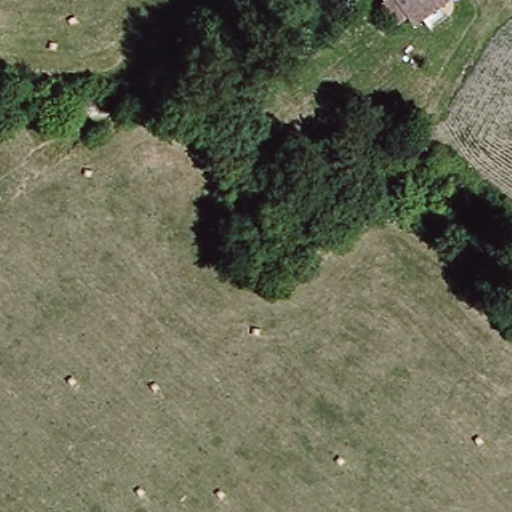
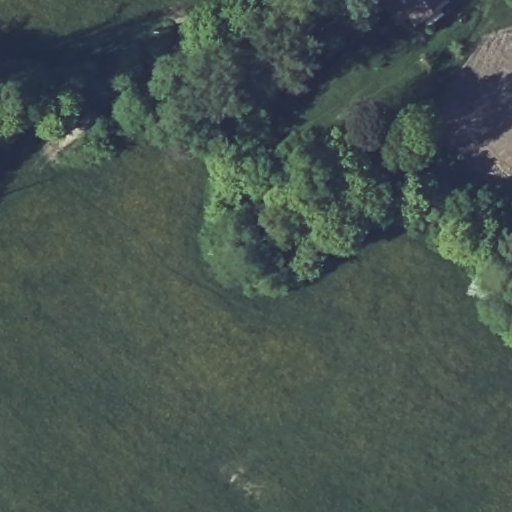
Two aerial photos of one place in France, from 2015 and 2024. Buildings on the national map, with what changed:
unchanged [(424,26),(412,12),(402,20),(385,0),(448,0),(449,2),(424,26)]

